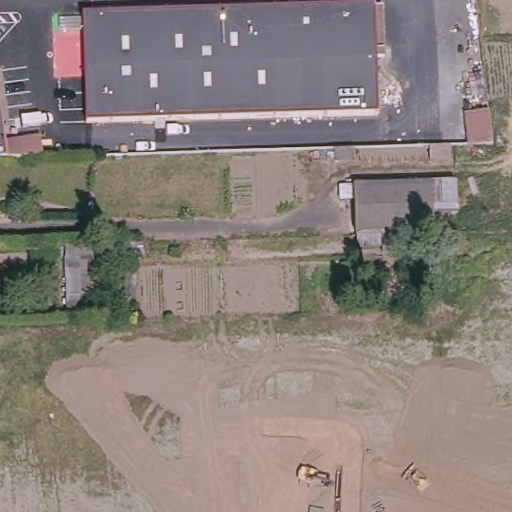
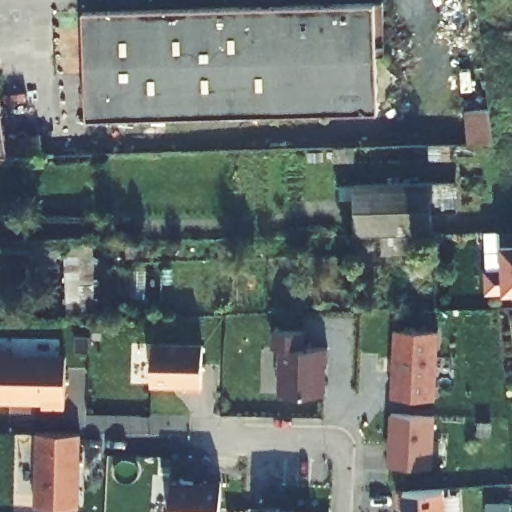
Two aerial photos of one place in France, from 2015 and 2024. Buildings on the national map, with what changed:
unchanged [(375,112),(82,120),(81,9),(371,5),(375,112)]
demolished [(460,69),(462,140),(437,141),(436,70),(460,69)]
unchanged [(53,138),(55,159),(46,159),(0,161),(0,103),(6,143),(53,138)]
unchanged [(492,145),(465,145),(463,108),(490,108),(492,145)]
unchanged [(358,181),(435,179),(457,180),(459,211),(436,211),(437,229),(384,231),(384,247),(357,246),(356,232),(355,202),(339,201),(338,185),(358,184),(358,181)]
new [(512,243),(512,291),(503,291),(486,293),(485,269),(502,265),(501,243),(512,243)]
unchanged [(66,269),(66,260),(93,260),(94,312),(67,313),(66,269)]
new [(396,328),(440,330),(437,399),(392,397),(396,328)]
new [(274,330),(304,331),(303,347),(327,347),(327,366),(324,366),(323,395),(280,394),(281,348),(273,348),(274,330)]
new [(152,343),(202,345),(202,388),(185,387),(185,384),(151,384),(152,343)]
new [(44,409),(44,403),(0,403),(0,350),(5,350),(4,354),(67,356),(66,410),(44,409)]
new [(394,412),(436,414),(433,466),(391,464),(394,412)]
new [(37,432),(81,433),(80,507),(36,506),(37,432)]
new [(204,482),(205,478),(222,479),(220,512),(169,512),(172,480),(204,482)]
new [(446,512),(404,512),(402,490),(444,487),(446,512)]
unchanged [(260,512),(260,507),(312,512),(260,512)]

